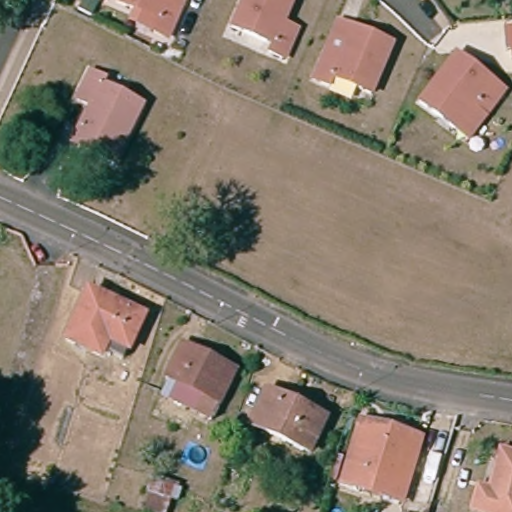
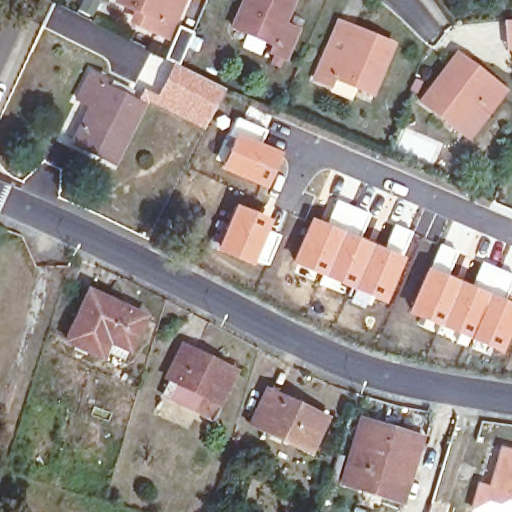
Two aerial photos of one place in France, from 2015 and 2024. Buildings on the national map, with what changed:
unchanged [(89,4),(82,0),(91,0),(89,4)]
unchanged [(182,3),(167,37),(151,31),(156,19),(115,1),(116,0),(183,0),(182,3)]
unchanged [(281,22),(295,29),(283,57),(268,51),(271,44),(230,26),(242,0),(291,0),(281,22)]
new [(511,50),(505,51),(503,19),(512,18),(512,57),(511,57),(511,50)]
unchanged [(390,44),(389,47),(369,94),(331,77),(328,85),(312,77),(325,49),(337,21),(351,27),(372,36),(390,44)]
new [(224,89),(203,130),(141,103),(137,102),(144,88),(156,95),(171,63),(164,58),(179,25),(193,32),(177,65),(224,89)]
unchanged [(494,80),(507,91),(489,116),(476,106),(459,130),(422,102),(458,54),(476,67),(494,80)]
unchanged [(75,134),(92,103),(76,95),(90,67),(108,76),(105,85),(141,103),(111,162),(91,151),(71,141),(75,134)]
new [(281,151),(265,188),(219,168),(235,131),(281,151)]
new [(235,202),(271,219),(251,265),(215,250),(235,202)]
new [(384,302),(290,262),(310,216),(328,224),(336,204),(365,216),(356,236),(404,256),(384,302)]
new [(472,286),(482,263),(512,276),(502,298),(512,302),(512,325),(500,352),(406,312),(426,266),(472,286)]
unchanged [(84,294),(141,321),(130,348),(105,336),(97,354),(64,337),(84,294)]
unchanged [(210,414),(163,390),(171,376),(167,374),(180,350),(184,342),(203,351),(235,367),(210,414)]
unchanged [(271,382),(326,407),(308,447),(252,421),(271,382)]
unchanged [(341,477),(362,413),(386,422),(398,426),(421,435),(398,497),(381,491),(358,482),(341,477)]
unchanged [(482,473),(491,477),(502,438),(512,442),(512,511),(474,498),(482,473)]
unchanged [(409,512),(404,512),(405,511),(409,512)]

